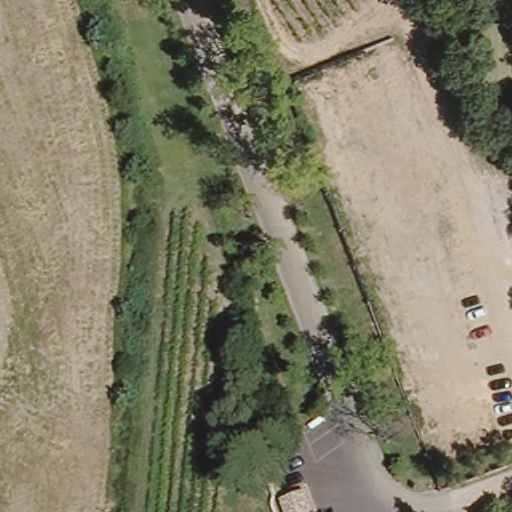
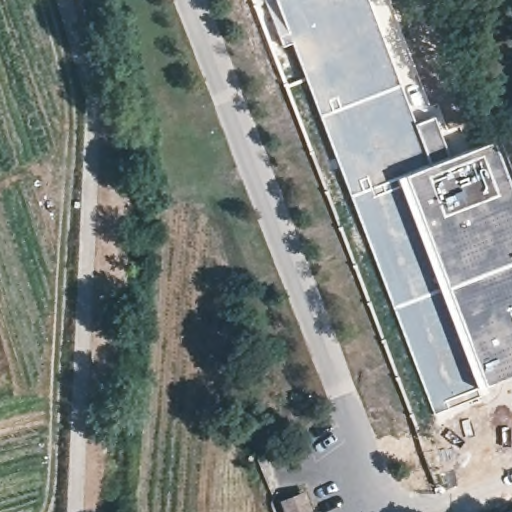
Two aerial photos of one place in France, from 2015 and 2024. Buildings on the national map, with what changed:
new [(512,183),(512,376),(479,390),(434,414),(291,44),(282,47),(265,1),(268,0),(369,0),(416,122),(435,116),(450,156),(495,139),(510,176),(512,183)]
unchanged [(306,488),(315,512),(294,512),(288,496),(306,488)]

